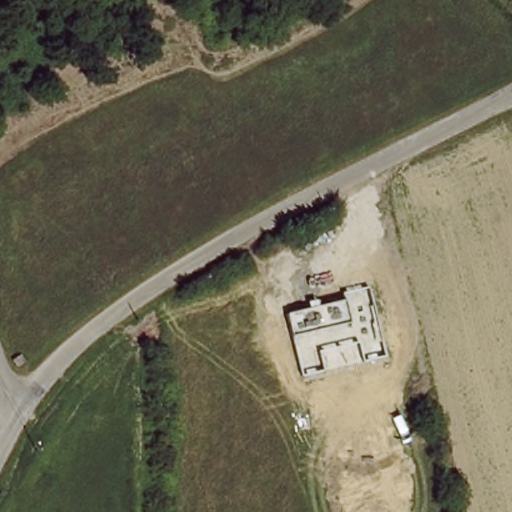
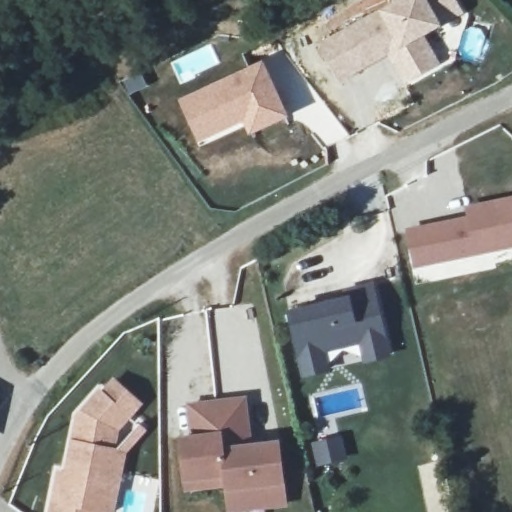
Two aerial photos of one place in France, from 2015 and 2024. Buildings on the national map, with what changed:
new [(454,0),(462,15),(423,36),(439,66),(406,85),(389,58),(338,87),(319,49),(402,0),(454,0)]
new [(189,95),(264,62),(288,117),(249,135),(243,122),(234,125),(238,131),(202,146),(182,103),(189,95)]
new [(407,229),(468,215),(465,205),(512,196),(512,248),(415,268),(407,229)]
unchanged [(389,355),(366,361),(362,342),(323,350),(327,369),(304,375),(289,312),(347,300),(345,291),(373,285),(389,355)]
new [(109,511),(109,512),(59,512),(65,474),(72,475),(77,442),(82,443),(87,421),(82,417),(103,392),(106,394),(117,380),(144,404),(133,417),(148,430),(129,452),(120,512),(116,512),(109,511)]
unchanged [(2,401),(0,408),(0,400),(2,401)]
new [(227,499),(225,485),(186,490),(184,480),(179,441),(196,438),(195,431),(190,432),(187,407),(242,400),(249,452),(257,451),(261,445),(276,443),(284,504),(263,507),(229,511),(227,499)]
new [(338,437),(343,457),(319,462),(314,443),(338,437)]

